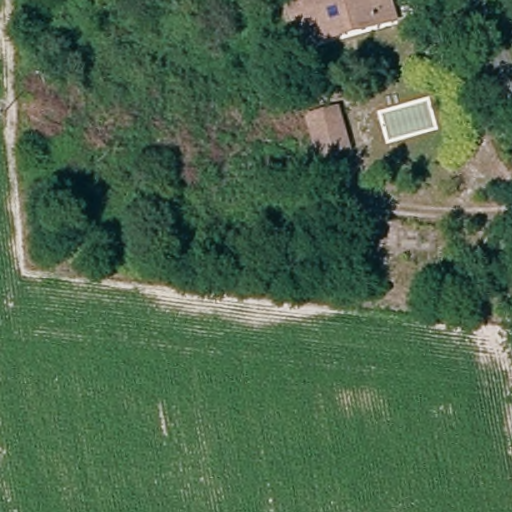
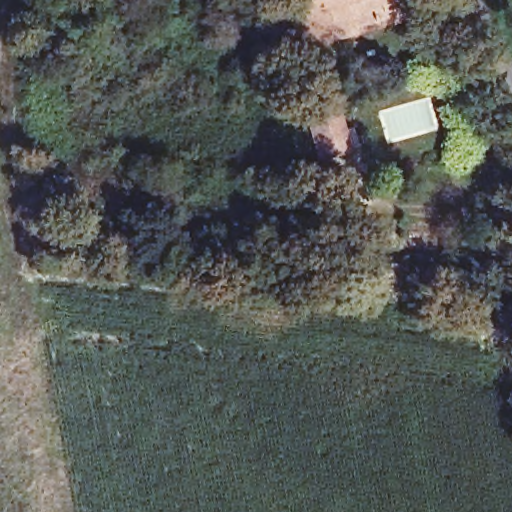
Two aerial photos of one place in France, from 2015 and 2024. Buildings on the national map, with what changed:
unchanged [(291,0),(367,0),(369,7),(388,3),(393,28),(315,46),(302,49),(291,0)]
unchanged [(335,110),(343,150),(315,157),(306,116),(335,110)]

